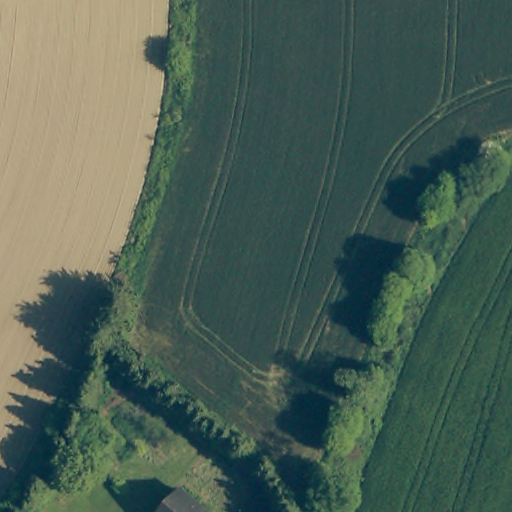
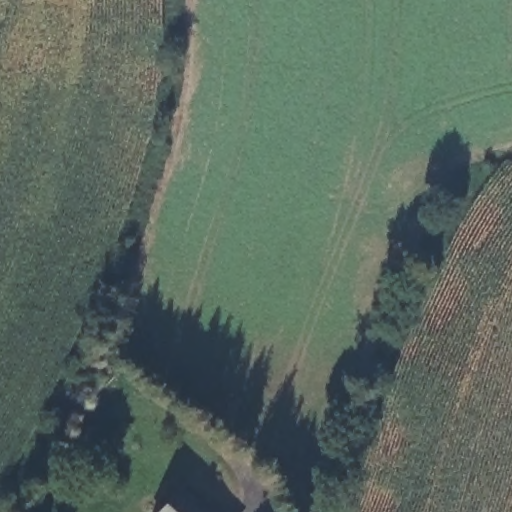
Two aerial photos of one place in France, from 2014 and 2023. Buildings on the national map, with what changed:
unchanged [(210,512),(162,512),(183,488),(210,512)]

